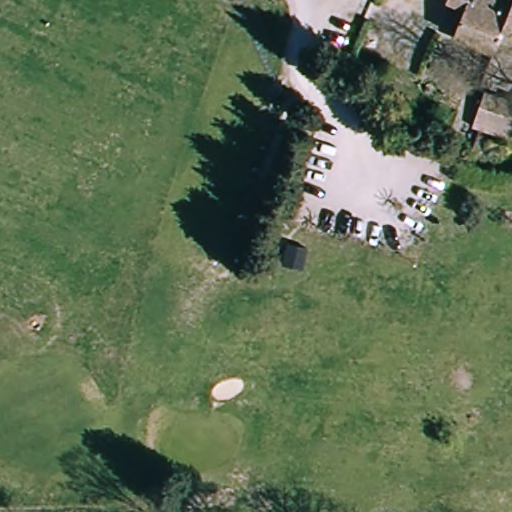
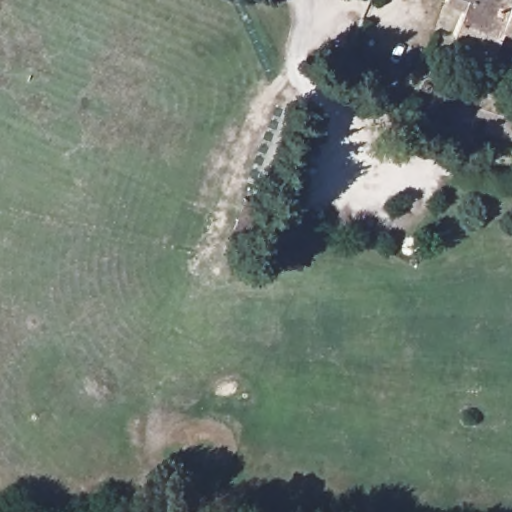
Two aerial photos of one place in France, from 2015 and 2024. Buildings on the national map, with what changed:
unchanged [(492,58),(447,42),(458,17),(442,6),(444,0),(512,0),(512,53),(496,47),(492,58)]
unchanged [(480,87),(512,100),(512,124),(473,109),(480,87)]

